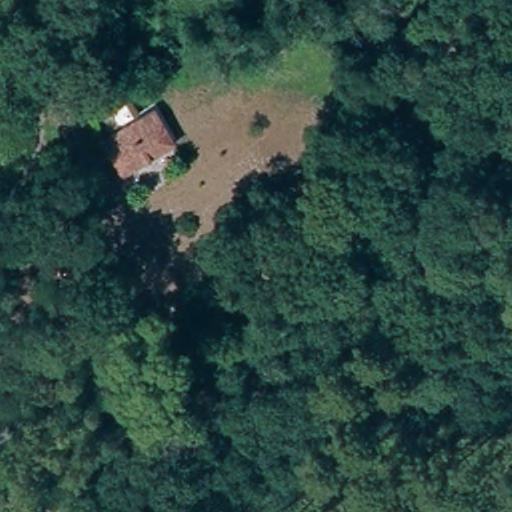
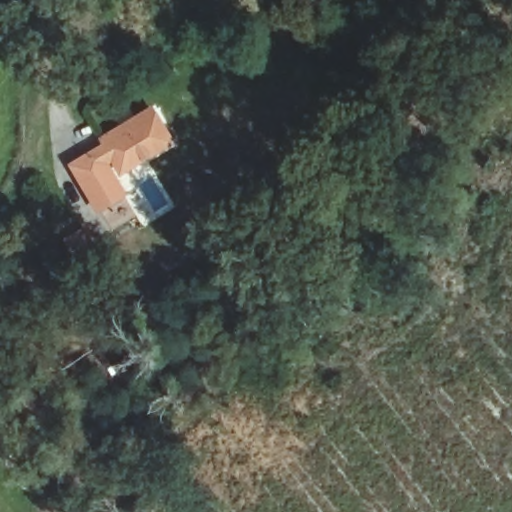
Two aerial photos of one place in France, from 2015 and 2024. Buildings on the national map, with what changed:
unchanged [(126,173),(106,136),(112,133),(156,110),(171,143),(174,149),(126,173)]
new [(103,144),(100,140),(106,136),(126,173),(121,176),(114,163),(110,165),(130,196),(99,215),(69,165),(103,144)]
unchanged [(49,193),(76,180),(91,211),(64,225),(49,193)]
new [(90,229),(99,248),(77,261),(66,243),(90,229)]

